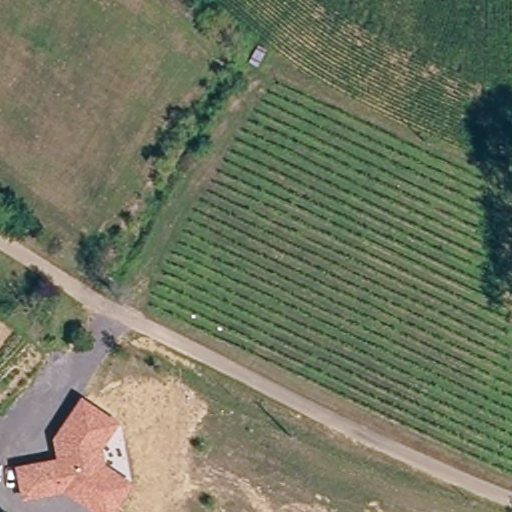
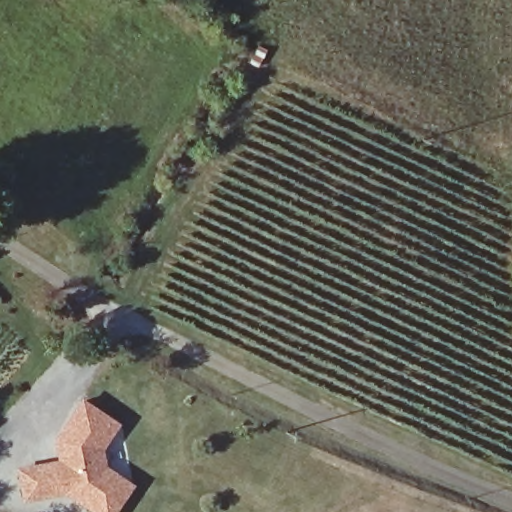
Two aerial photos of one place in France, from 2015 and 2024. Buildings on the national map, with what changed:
unchanged [(119,423),(103,450),(105,466),(134,485),(116,512),(88,512),(61,495),(20,503),(15,468),(56,458),(52,439),(81,397),(119,423)]

